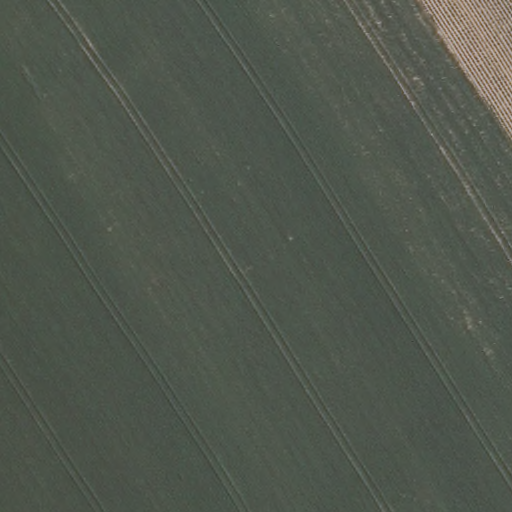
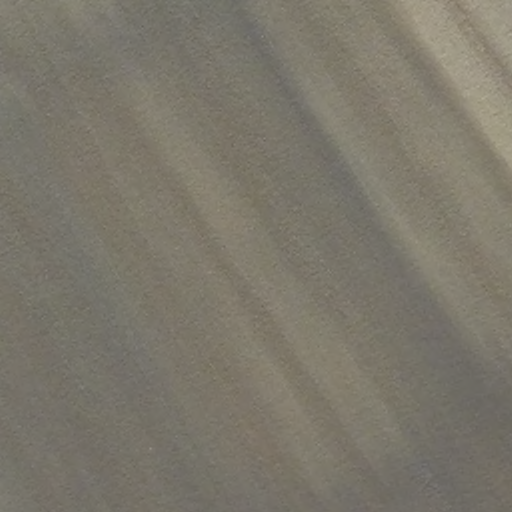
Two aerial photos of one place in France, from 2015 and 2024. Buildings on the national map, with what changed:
[]

